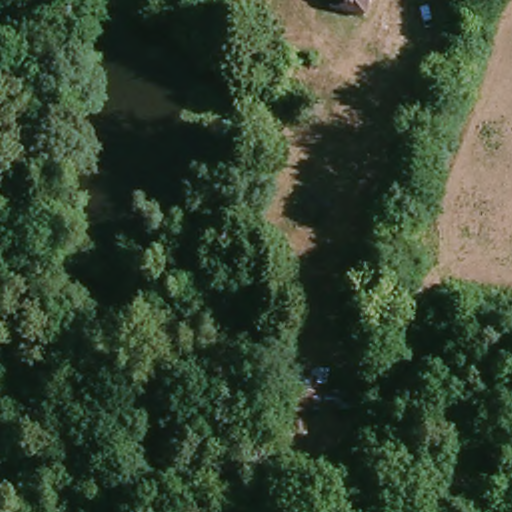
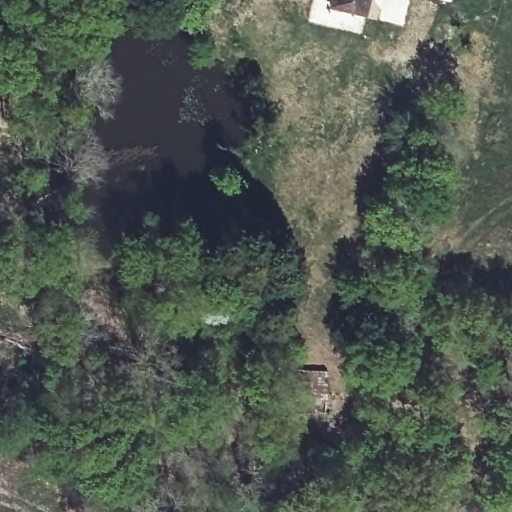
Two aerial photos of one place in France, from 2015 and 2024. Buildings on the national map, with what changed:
unchanged [(335,10),(337,0),(370,0),(366,16),(364,16),(335,10)]
unchanged [(295,414),(297,372),(327,373),(325,392),(381,390),(379,411),(295,414)]

